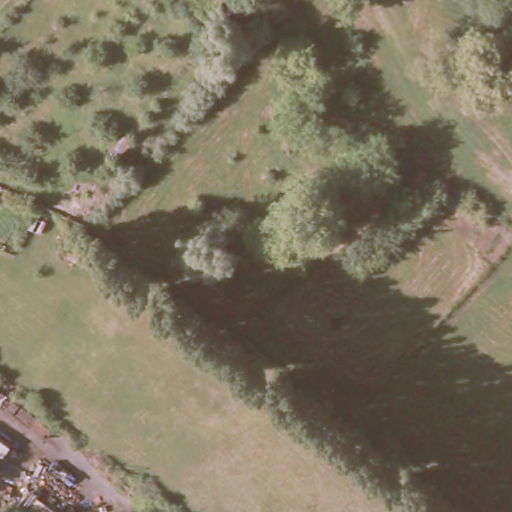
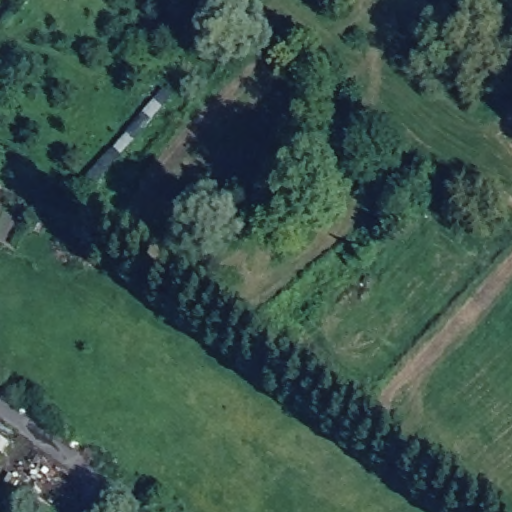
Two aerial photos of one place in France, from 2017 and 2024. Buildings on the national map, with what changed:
unchanged [(220,0),(205,18),(183,0),(220,0)]
unchanged [(32,217),(44,223),(37,235),(27,229),(32,217)]

